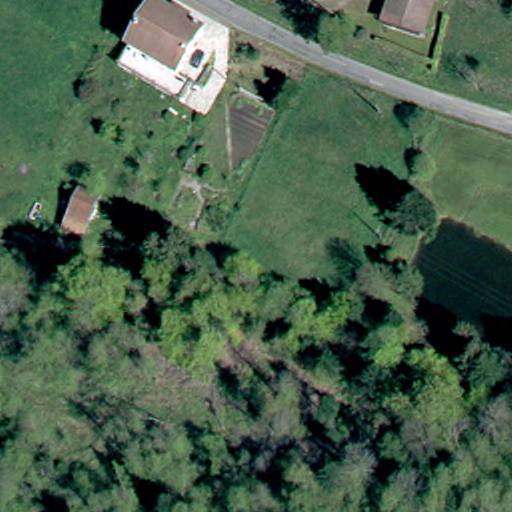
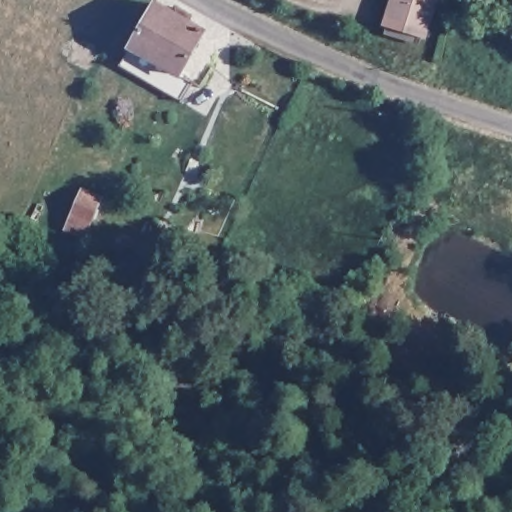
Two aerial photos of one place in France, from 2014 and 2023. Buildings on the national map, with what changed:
unchanged [(133,30),(151,0),(181,0),(208,14),(183,58),(133,30)]
unchanged [(380,16),(390,0),(426,0),(434,5),(415,37),(380,16)]
unchanged [(183,58),(197,66),(185,85),(122,49),(133,30),(183,58)]
unchanged [(74,189),(90,199),(77,219),(61,210),(74,189)]
unchanged [(19,347),(12,361),(0,359),(0,342),(19,347)]

